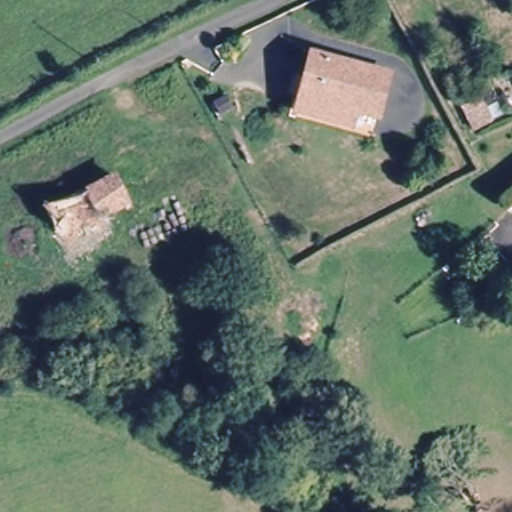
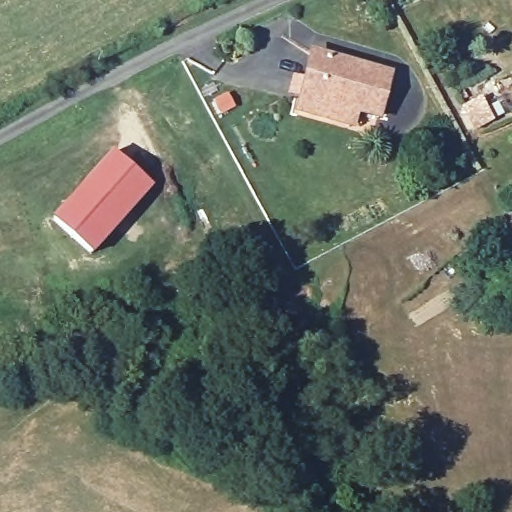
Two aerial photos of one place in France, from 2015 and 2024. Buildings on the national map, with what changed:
unchanged [(296,115),(301,97),(290,94),(295,76),(306,79),(312,55),(390,76),(390,78),(388,77),(376,119),(379,119),(378,121),(355,115),(351,130),(329,124),(296,115)]
new [(153,188),(91,257),(46,221),(110,150),(153,188)]
demolished [(126,203),(57,234),(45,207),(114,176),(126,203)]

